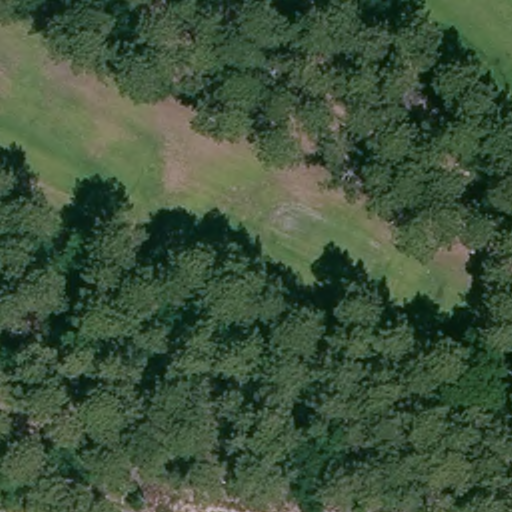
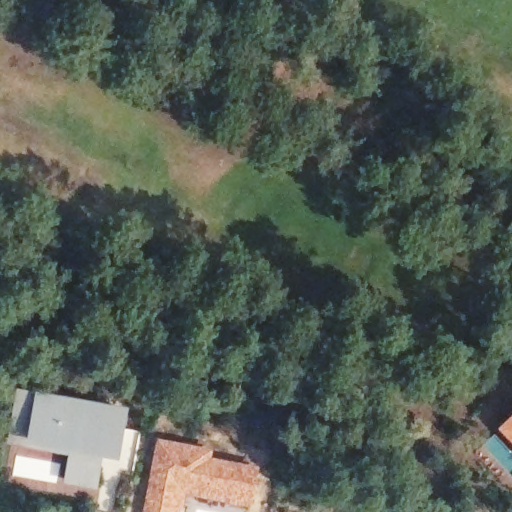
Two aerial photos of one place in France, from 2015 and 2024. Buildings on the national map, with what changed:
new [(119,459),(104,456),(97,489),(65,483),(69,455),(7,445),(16,389),(36,392),(127,407),(119,459)]
new [(498,428),(512,415),(512,443),(498,428)]
new [(214,448),(212,456),(261,465),(252,509),(186,495),(182,512),(141,512),(156,437),(214,448)]

